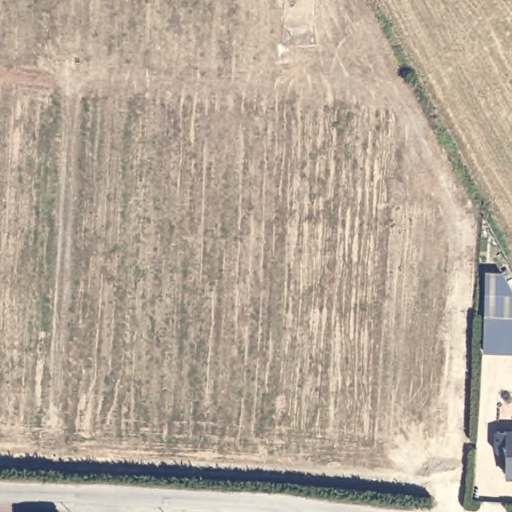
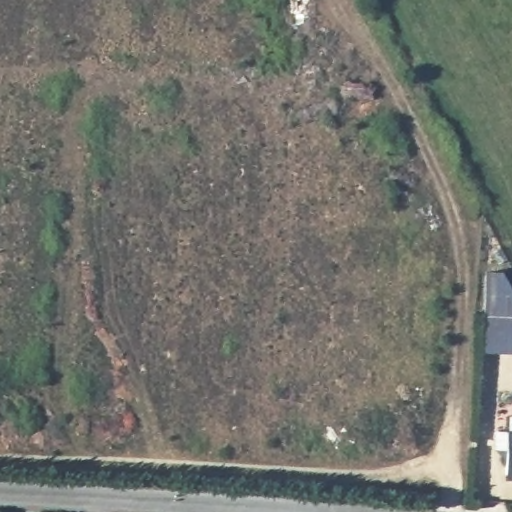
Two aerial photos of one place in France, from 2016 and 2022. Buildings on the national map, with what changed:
unchanged [(483,350),(485,313),(485,271),(503,272),(512,289),(512,351),(483,350)]
unchanged [(512,431),(512,474),(505,473),(506,458),(502,453),(496,447),(497,429),(503,430),(512,431)]

